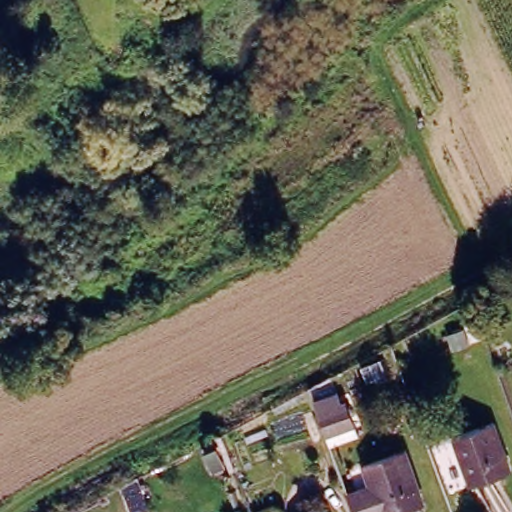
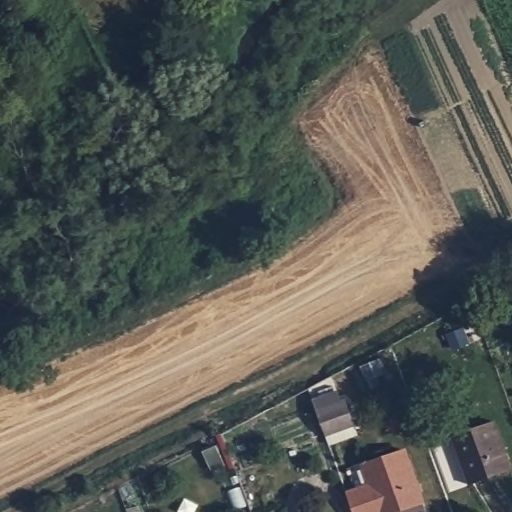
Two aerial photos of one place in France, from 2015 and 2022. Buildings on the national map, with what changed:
unchanged [(363,425),(335,436),(325,410),(317,386),(339,374),(348,401),(354,399),(363,425)]
unchanged [(508,470),(466,486),(452,439),(493,424),(508,470)]
unchanged [(405,448),(422,497),(382,512),(377,512),(377,511),(374,512),(351,512),(345,493),(370,483),(363,463),(405,448)]

